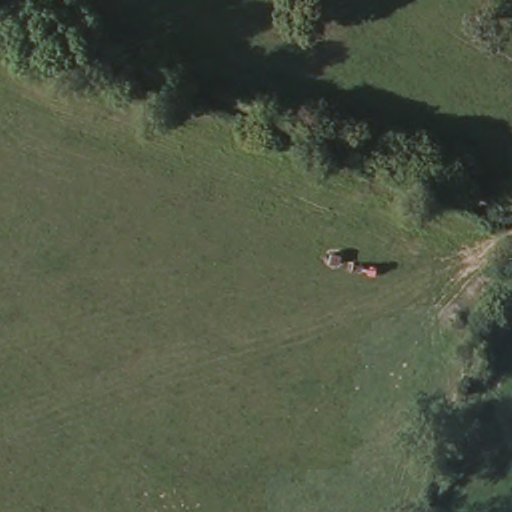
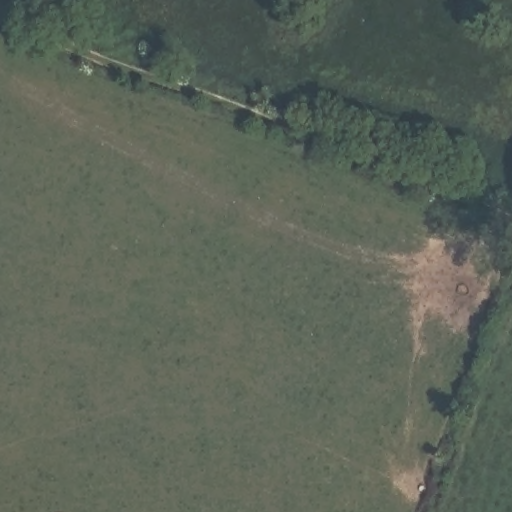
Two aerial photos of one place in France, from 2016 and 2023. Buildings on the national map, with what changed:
[]

